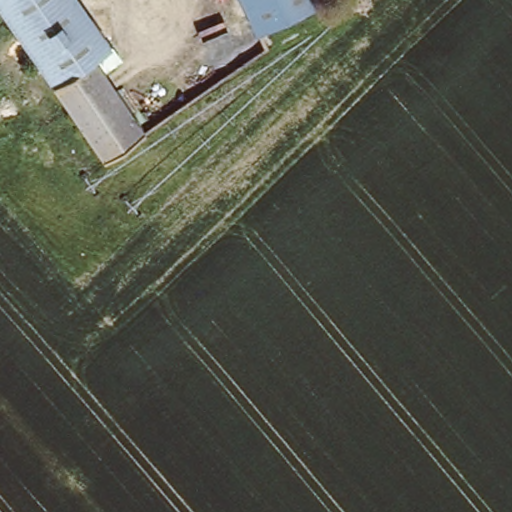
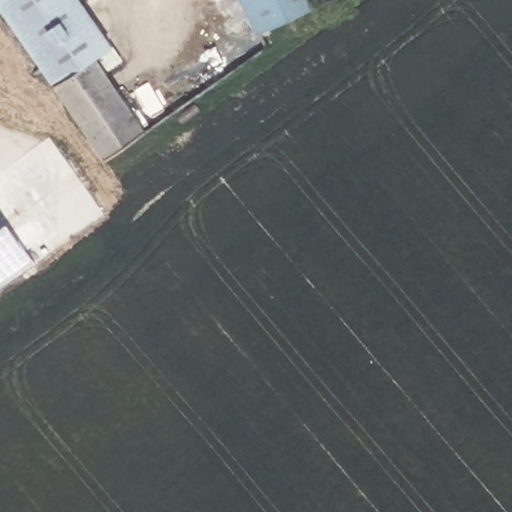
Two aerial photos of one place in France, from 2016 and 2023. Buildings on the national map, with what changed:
unchanged [(58,89),(0,4),(0,0),(77,0),(113,52),(98,62),(58,89)]
unchanged [(245,0),(319,0),(321,4),(260,32),(245,0)]
unchanged [(58,89),(98,62),(150,139),(109,166),(58,89)]
new [(37,263),(0,289),(0,213),(37,263)]

